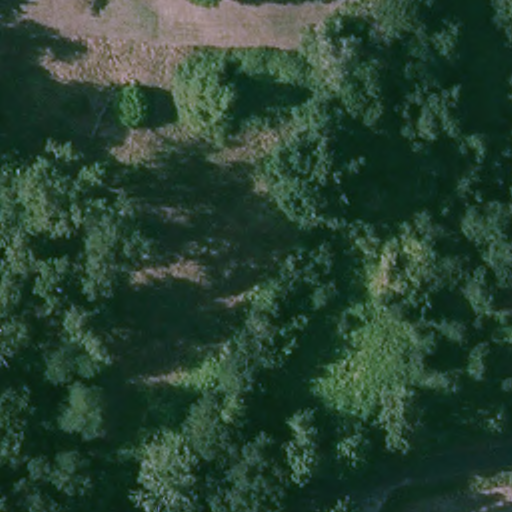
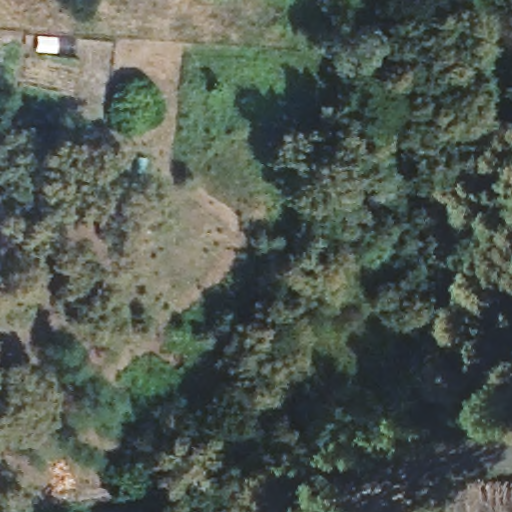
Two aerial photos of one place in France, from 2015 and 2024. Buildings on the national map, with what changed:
[]

